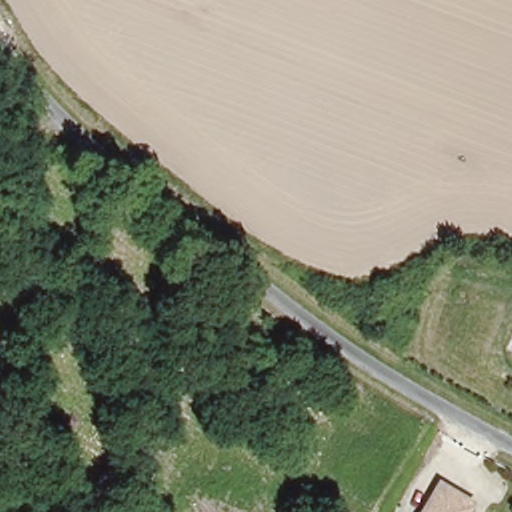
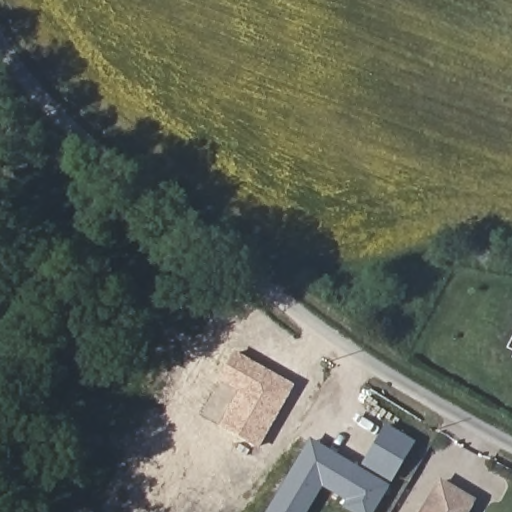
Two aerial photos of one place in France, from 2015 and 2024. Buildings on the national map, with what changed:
new [(217,427),(237,392),(217,380),(233,351),(294,385),(258,451),(217,427)]
new [(389,486),(373,512),(349,512),(341,508),(346,501),(322,487),(307,512),(266,512),(309,439),(360,467),(385,425),(414,442),(389,486)]
unchanged [(443,481),(475,500),(468,512),(425,512),(443,481)]

